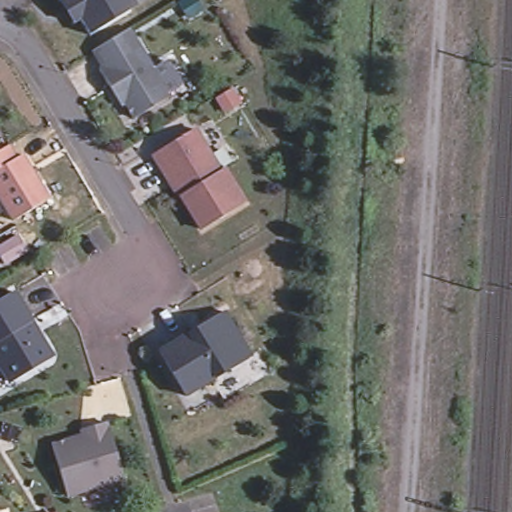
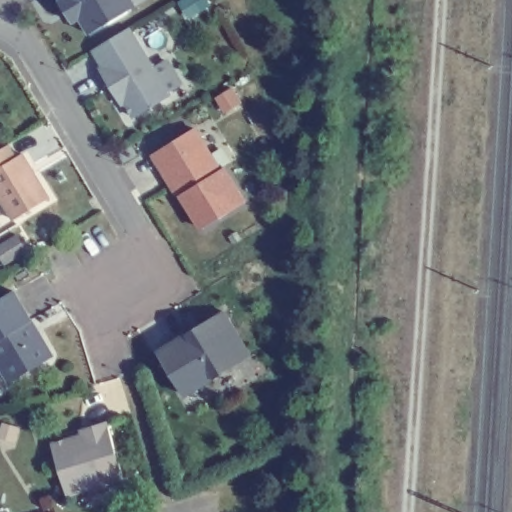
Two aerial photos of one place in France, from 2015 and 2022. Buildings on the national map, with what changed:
unchanged [(135,5),(95,30),(85,14),(78,18),(68,0),(132,0),(135,5)]
unchanged [(115,96),(99,70),(103,67),(93,50),(127,30),(128,29),(170,97),(134,118),(125,102),(120,105),(115,96)]
unchanged [(193,129),(219,171),(223,168),(245,203),(202,229),(155,153),(193,129)]
unchanged [(15,158),(22,154),(49,199),(13,221),(0,199),(0,151),(8,146),(15,158)]
unchanged [(31,322),(27,324),(35,338),(42,340),(50,353),(48,360),(10,383),(0,366),(0,299),(12,291),(31,322)]
unchanged [(189,328),(192,333),(206,325),(203,319),(223,307),(250,351),(212,375),(185,391),(158,346),(189,328)]
unchanged [(257,348),(270,368),(224,395),(212,375),(250,351),(257,348)]
unchanged [(80,431),(92,428),(107,423),(124,478),(67,495),(51,445),(82,436),(80,431)]

